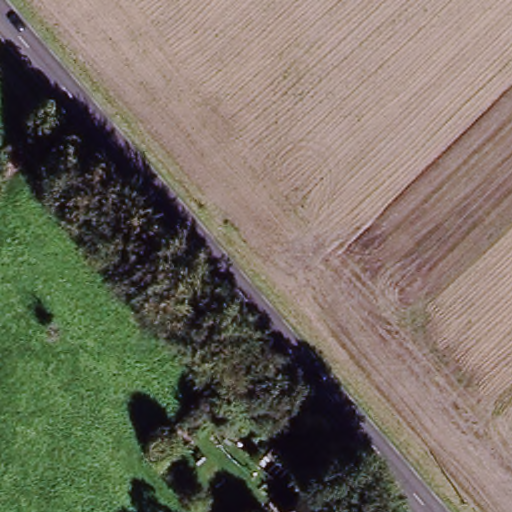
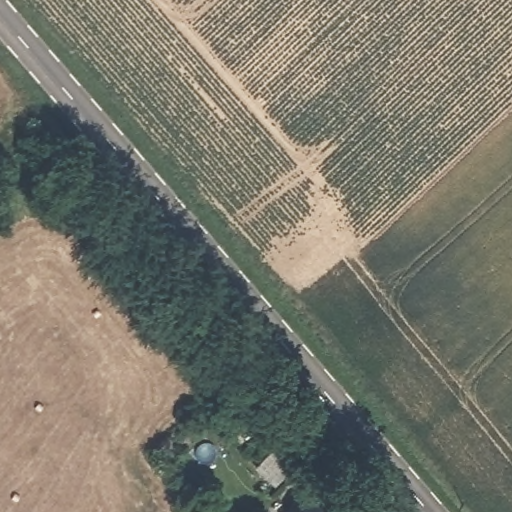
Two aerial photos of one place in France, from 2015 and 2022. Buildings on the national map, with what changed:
unchanged [(282,512),(312,480),(329,498),(315,512),(282,512)]
unchanged [(343,512),(315,512),(329,498),(343,512)]

